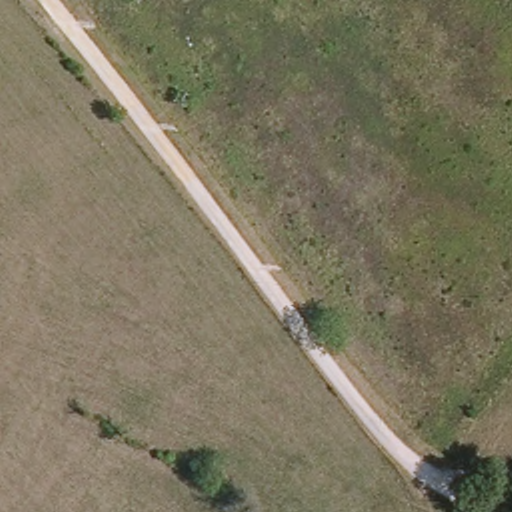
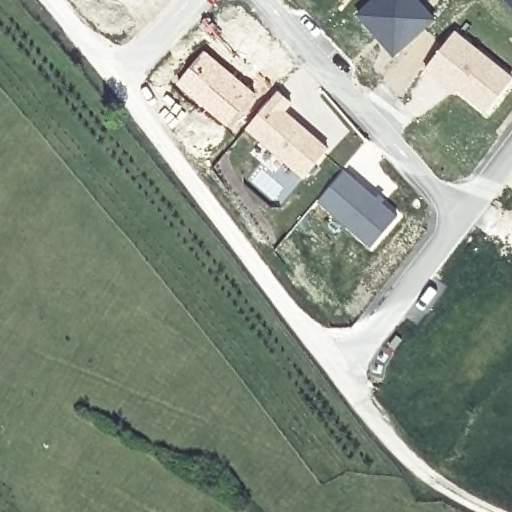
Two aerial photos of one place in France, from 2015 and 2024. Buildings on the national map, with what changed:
new [(421,0),(436,18),(393,57),(354,13),(368,0),(421,0)]
new [(512,0),(512,8),(504,0),(512,0)]
new [(453,96),(423,71),(455,31),(512,78),(512,80),(485,113),(457,91),(453,96)]
new [(204,49),(259,96),(230,129),(175,83),(204,49)]
new [(277,90),(292,103),(287,110),(329,147),(301,179),(244,128),(277,90)]
new [(261,167),(290,191),(279,205),(247,181),(261,167)]
new [(344,168),(398,214),(369,248),(315,201),(344,168)]

